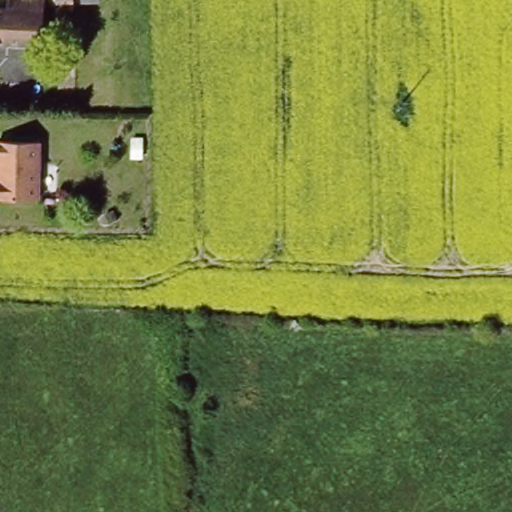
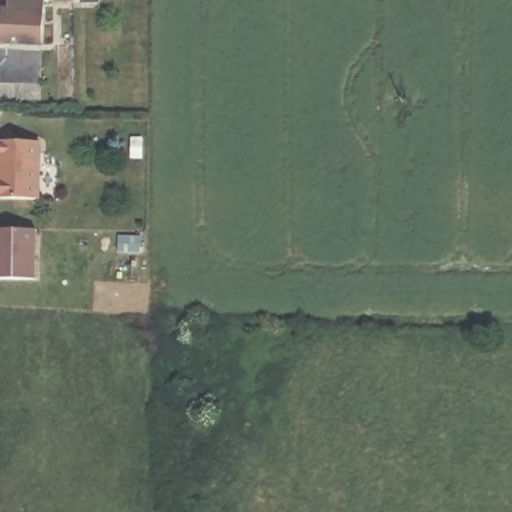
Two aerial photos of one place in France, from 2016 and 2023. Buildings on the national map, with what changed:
unchanged [(12,42),(12,44),(0,44),(0,8),(10,8),(10,0),(46,0),(46,9),(45,43),(33,43),(12,42)]
unchanged [(0,198),(0,143),(42,144),(42,199),(0,198)]
new [(0,228),(37,229),(36,279),(0,279),(0,228)]

